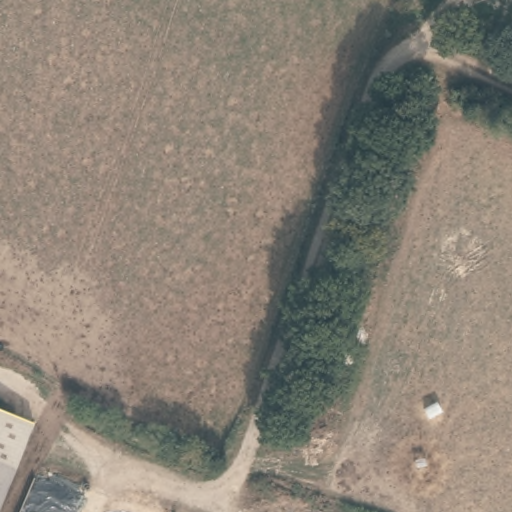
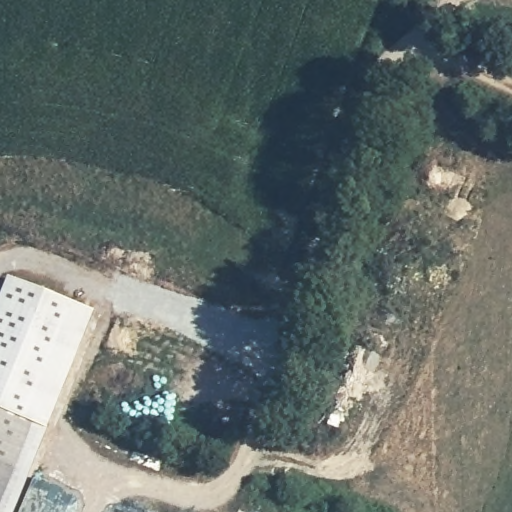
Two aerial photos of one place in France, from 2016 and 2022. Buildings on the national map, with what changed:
new [(95,311),(15,512),(0,512),(0,483),(25,417),(0,408),(0,300),(9,277),(95,311)]
unchanged [(0,483),(0,408),(25,417),(0,483)]

